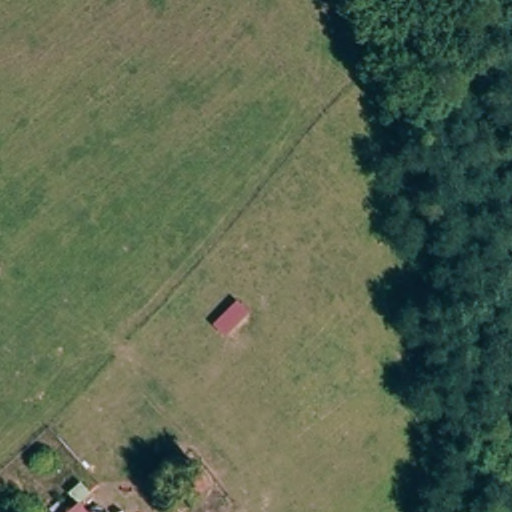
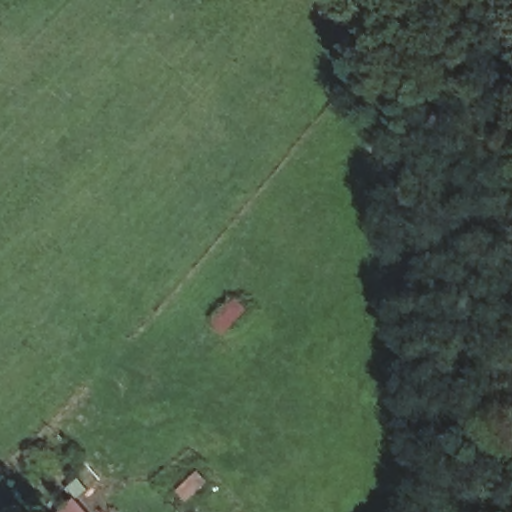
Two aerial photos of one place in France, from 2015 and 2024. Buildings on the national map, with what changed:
unchanged [(66,512),(78,502),(87,512),(66,512)]

